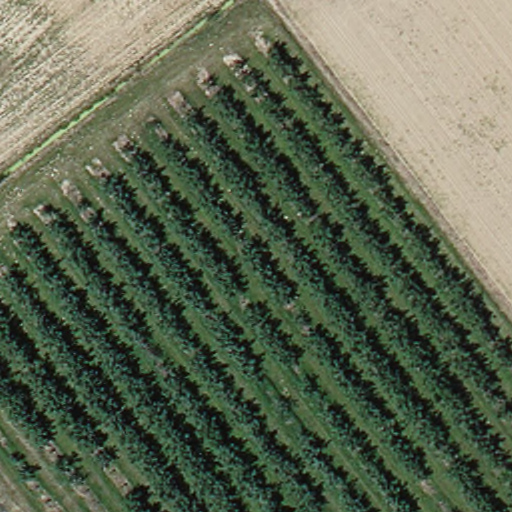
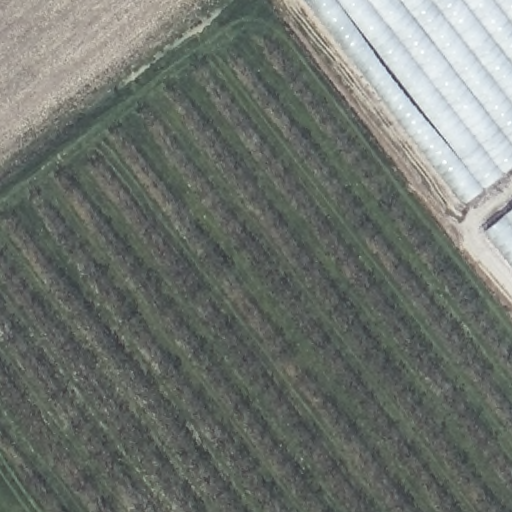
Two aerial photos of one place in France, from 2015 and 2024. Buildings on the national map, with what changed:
new [(308,0),(512,0),(512,168),(466,204),(308,0)]
new [(512,207),(512,265),(484,229),(512,207)]

